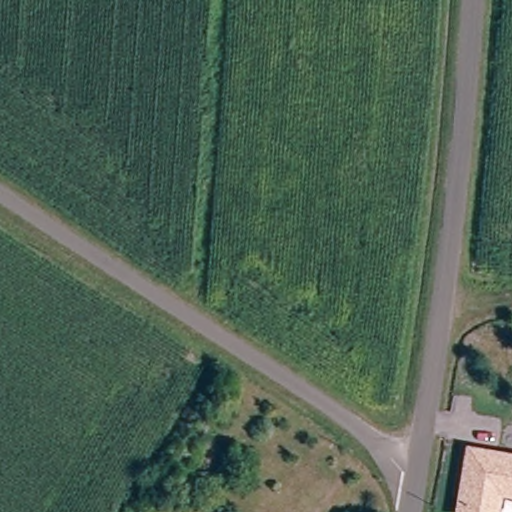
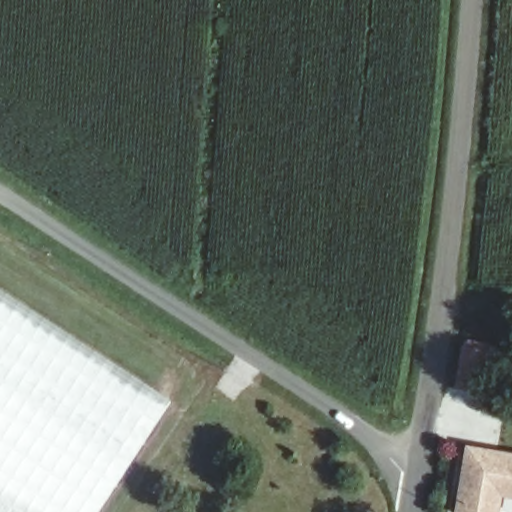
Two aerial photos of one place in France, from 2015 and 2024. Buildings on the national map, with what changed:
new [(101,512),(0,512),(0,290),(173,402),(101,512)]
unchanged [(465,446),(512,453),(512,500),(503,498),(500,512),(454,512),(465,446)]

